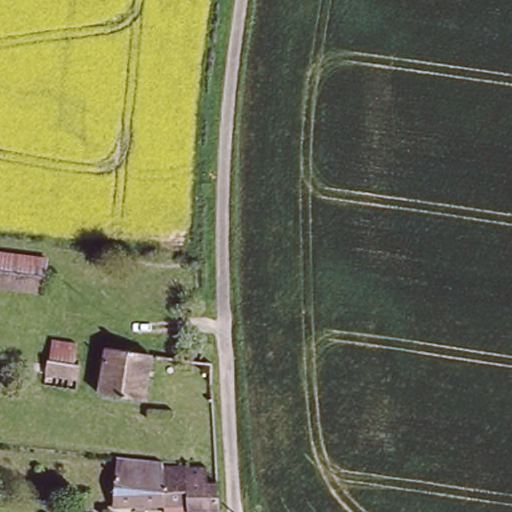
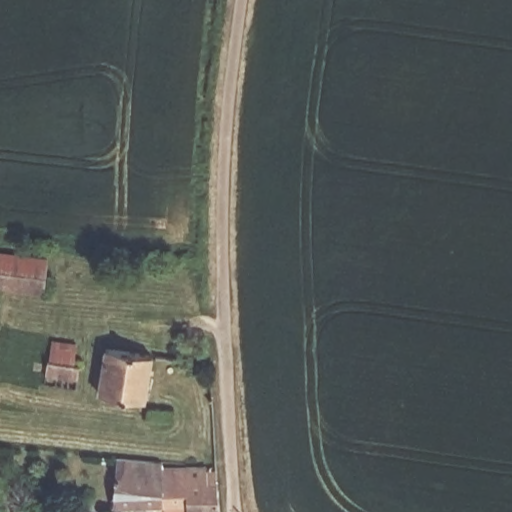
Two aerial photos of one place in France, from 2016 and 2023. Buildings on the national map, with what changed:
unchanged [(35,285),(0,280),(0,258),(39,263),(35,285)]
unchanged [(105,350),(154,355),(149,399),(100,394),(105,350)]
unchanged [(49,351),(82,356),(80,371),(46,366),(49,351)]
unchanged [(112,498),(117,458),(167,463),(167,473),(187,475),(188,471),(217,473),(219,492),(220,512),(182,512),(182,505),(112,498)]

